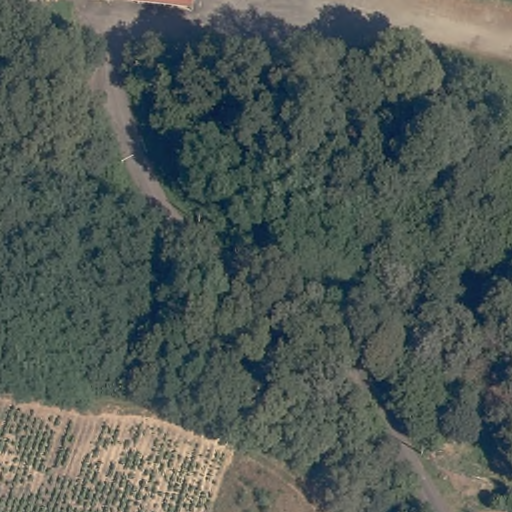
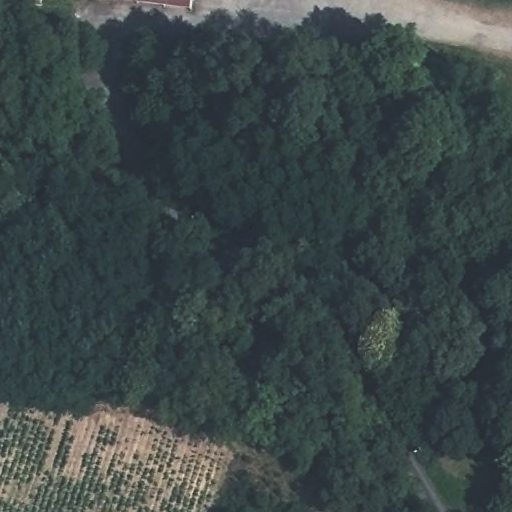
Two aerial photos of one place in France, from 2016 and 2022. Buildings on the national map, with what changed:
unchanged [(122,0),(197,0),(196,10),(122,0)]

